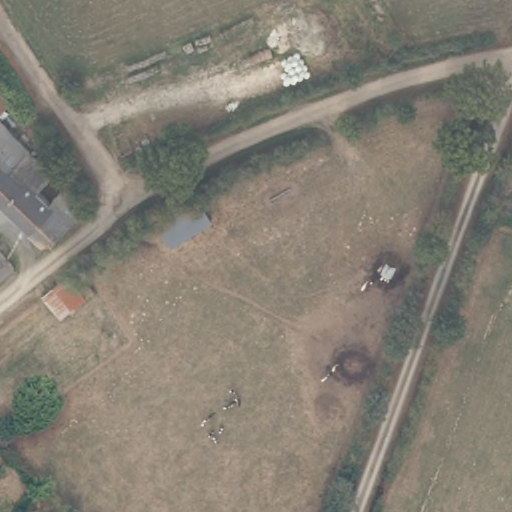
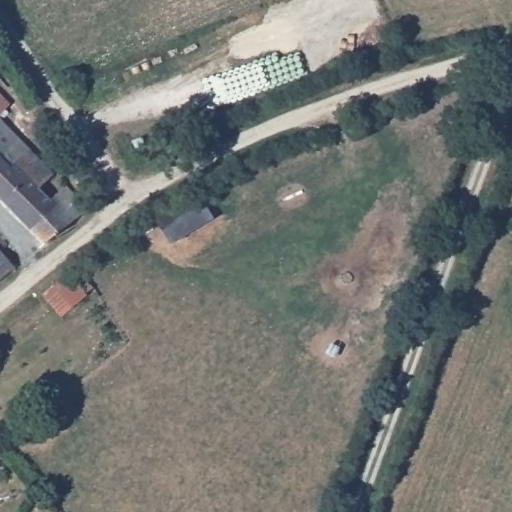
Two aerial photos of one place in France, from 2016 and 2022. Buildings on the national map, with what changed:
unchanged [(9,109),(0,119),(0,100),(9,109)]
unchanged [(54,179),(38,194),(53,209),(56,206),(53,202),(65,190),(83,209),(84,210),(84,212),(84,214),(84,215),(83,217),(82,218),(76,223),(43,249),(0,207),(0,125),(54,179)]
unchanged [(14,267),(0,279),(0,251),(14,267)]
unchanged [(37,300),(71,270),(91,293),(56,323),(37,300)]

